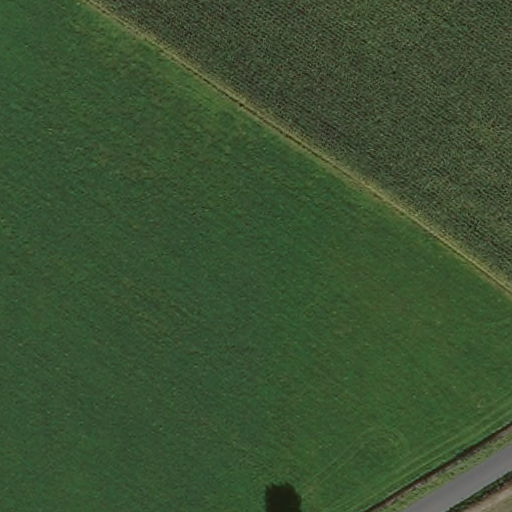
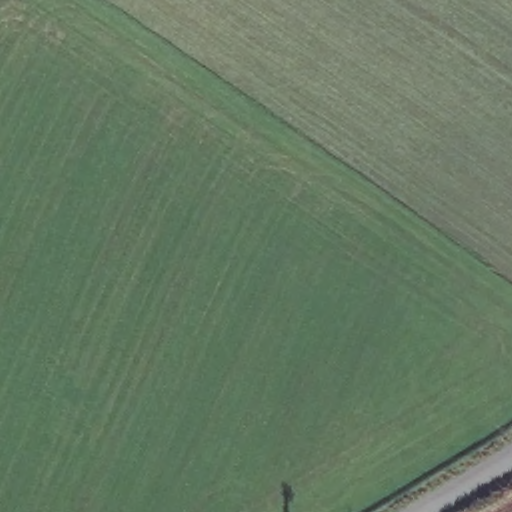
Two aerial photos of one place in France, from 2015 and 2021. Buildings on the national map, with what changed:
[]

